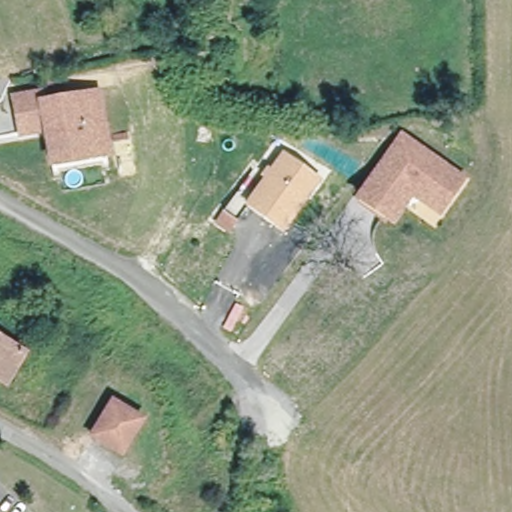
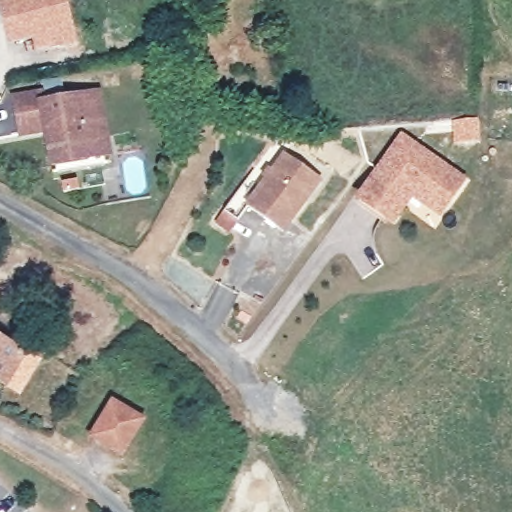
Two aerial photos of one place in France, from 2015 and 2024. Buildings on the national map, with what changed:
new [(36,50),(33,35),(8,43),(0,13),(0,0),(68,0),(78,41),(36,50)]
unchanged [(22,137),(18,115),(16,99),(41,95),(43,104),(99,94),(110,158),(108,158),(107,156),(56,164),(56,167),(54,167),(49,141),(48,132),(22,137)]
unchanged [(431,204),(408,188),(387,216),(363,198),(406,139),(465,183),(451,202),(443,213),(431,204)]
unchanged [(281,233),(253,212),(247,207),(236,221),(223,212),(254,172),(266,181),(271,174),(285,157),(319,184),(281,233)]
unchanged [(5,384),(0,382),(0,335),(25,350),(5,384)]
unchanged [(116,399),(140,414),(119,450),(96,435),(116,399)]

